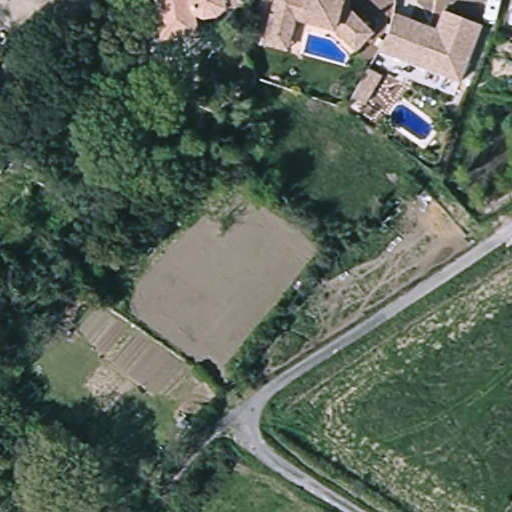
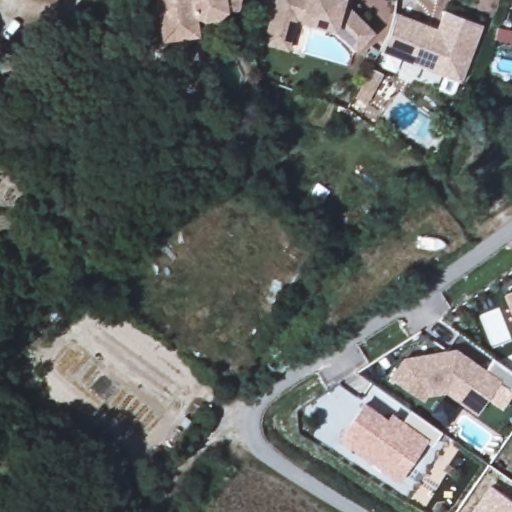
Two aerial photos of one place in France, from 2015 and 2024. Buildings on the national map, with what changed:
unchanged [(195,11),(198,32),(163,38),(157,0),(238,0),(236,6),(223,6),(217,14),(208,16),(195,11)]
unchanged [(271,24),(274,0),(347,0),(375,23),(360,41),(336,21),(296,15),(295,28),(292,48),(268,44),(271,24)]
unchanged [(480,24),(454,95),(374,64),(398,14),(439,29),(445,11),(480,24)]
new [(512,290),(512,316),(504,294),(512,290)]
new [(512,373),(512,395),(502,408),(488,399),(478,413),(446,389),(425,394),(421,399),(391,379),(405,359),(456,351),(485,372),(493,359),(512,373)]
new [(441,433),(432,446),(426,441),(398,479),(342,439),(365,406),(387,422),(392,416),(401,423),(411,410),(441,433)]
new [(490,484),(512,501),(512,512),(471,512),(490,484)]

